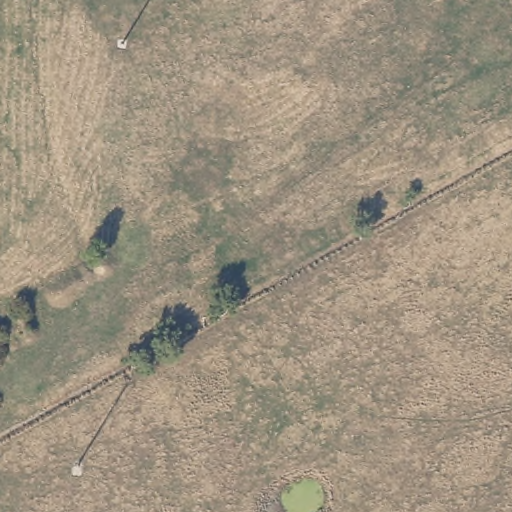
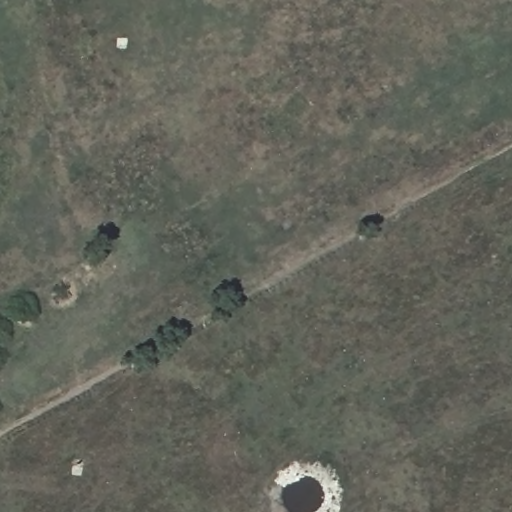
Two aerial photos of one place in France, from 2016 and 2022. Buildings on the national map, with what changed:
[]

